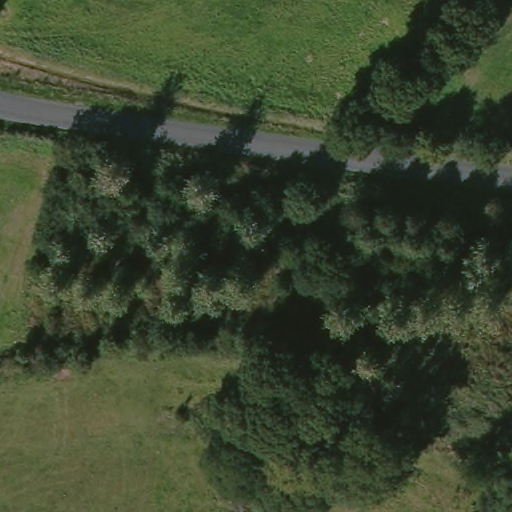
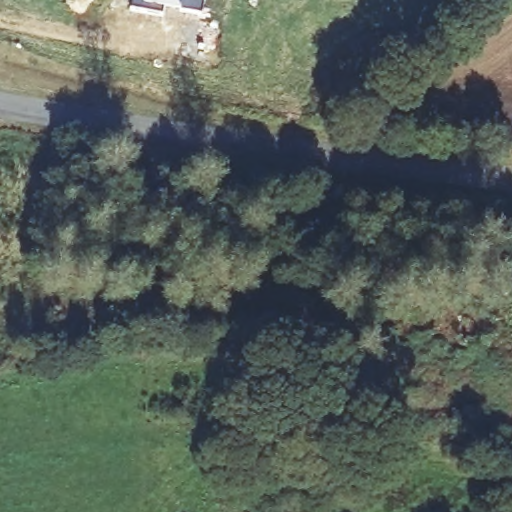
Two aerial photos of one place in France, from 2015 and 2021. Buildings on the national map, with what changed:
new [(161,14),(129,9),(131,0),(203,0),(201,14),(178,10),(163,7),(161,14)]

